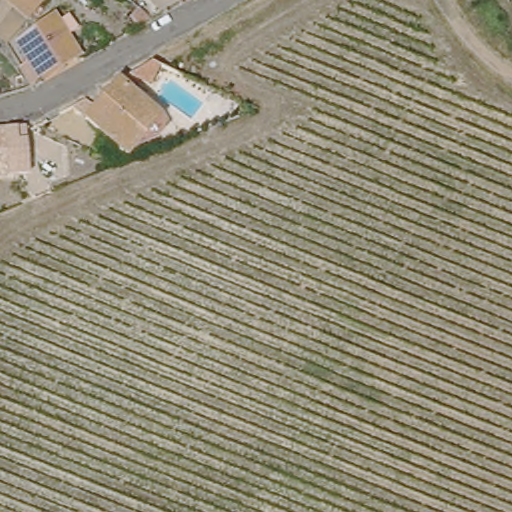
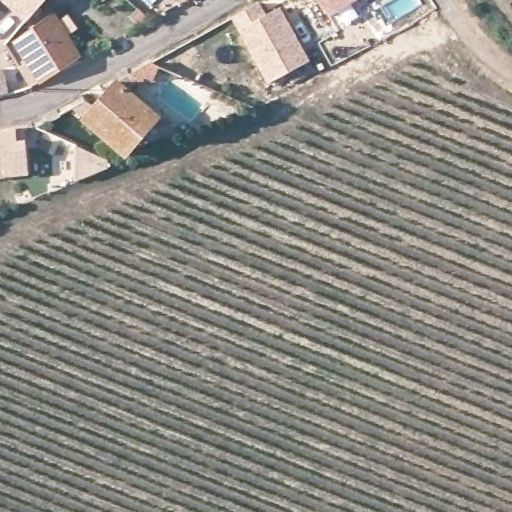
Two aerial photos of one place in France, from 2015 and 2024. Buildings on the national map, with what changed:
unchanged [(5,0),(37,0),(23,15),(5,0)]
new [(260,0),(266,14),(280,6),(310,60),(267,85),(230,17),(260,0)]
new [(330,17),(318,0),(357,0),(330,17)]
unchanged [(36,80),(11,40),(49,10),(73,54),(36,80)]
unchanged [(178,91),(132,72),(160,60),(187,71),(178,91)]
unchanged [(127,155),(84,117),(92,109),(117,83),(157,117),(127,155)]
unchanged [(14,137),(15,151),(1,153),(2,170),(0,170),(0,138),(14,137)]

